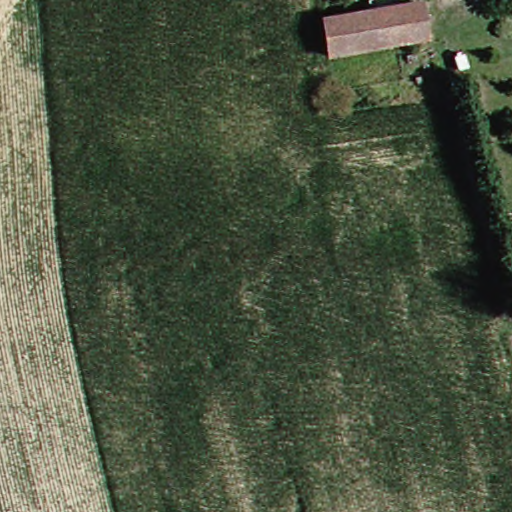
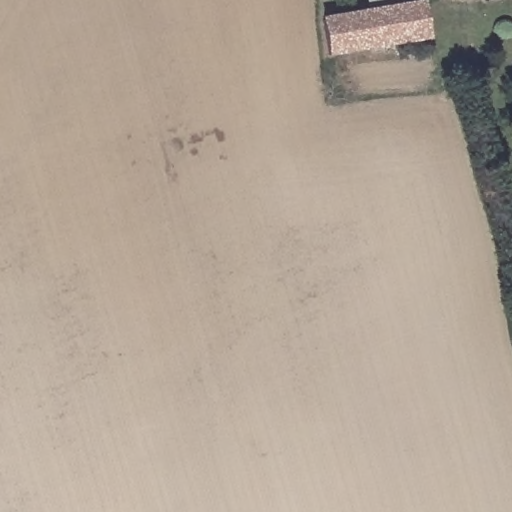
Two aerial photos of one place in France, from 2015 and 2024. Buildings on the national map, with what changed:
unchanged [(413,8),(418,43),(323,52),(319,20),(413,8)]

